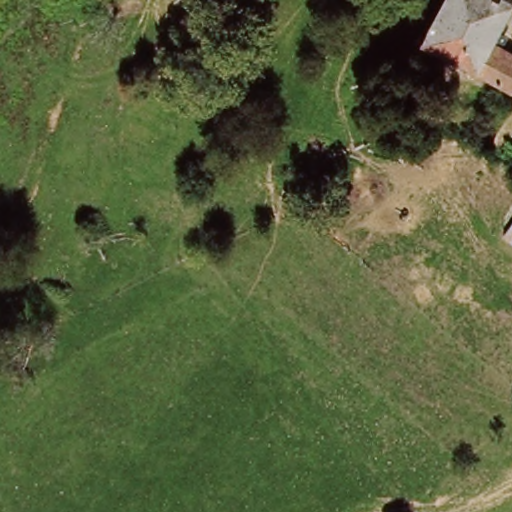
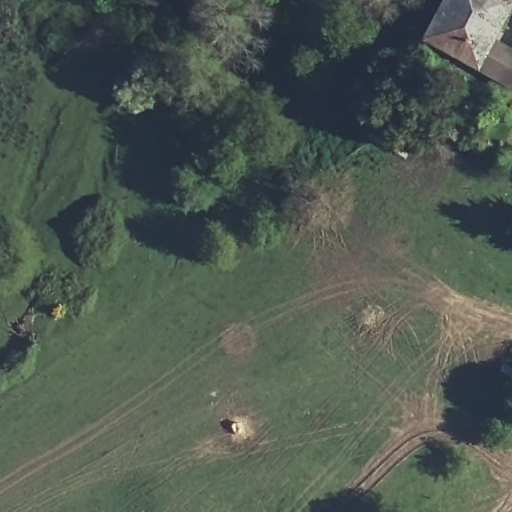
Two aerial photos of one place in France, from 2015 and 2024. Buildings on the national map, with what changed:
unchanged [(512,2),(492,40),(512,51),(512,85),(425,36),(445,0),(512,0),(512,2)]

